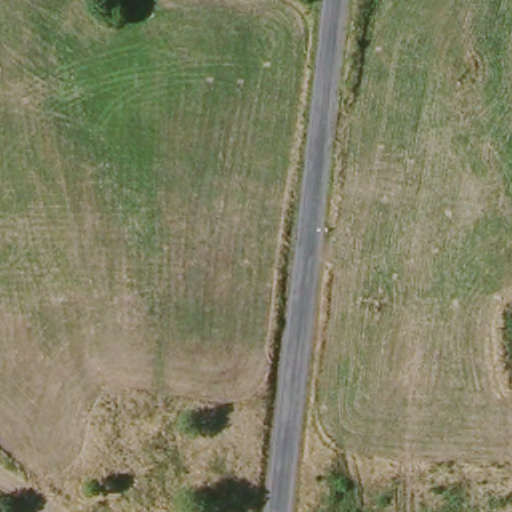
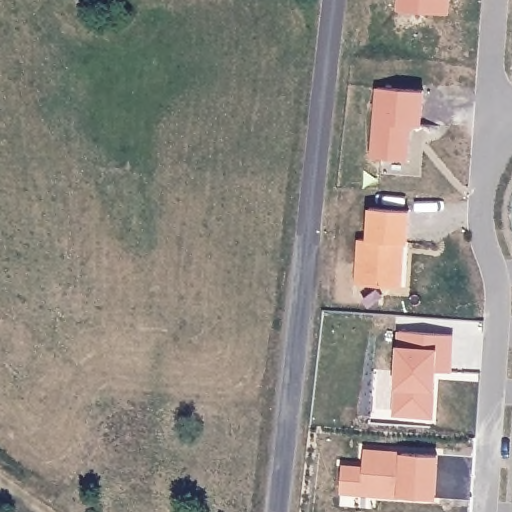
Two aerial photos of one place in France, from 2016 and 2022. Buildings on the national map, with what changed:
new [(400,9),(401,0),(446,0),(445,11),(400,9)]
new [(445,11),(445,0),(450,0),(450,12),(445,11)]
new [(381,84),(426,89),(423,124),(413,123),(410,158),(375,154),(381,84)]
new [(356,241),(363,241),(366,211),(408,213),(405,247),(403,247),(403,251),(400,288),(356,286),(356,241)]
new [(401,329),(455,333),(452,371),(432,369),(430,387),(435,387),(433,415),(395,413),(401,329)]
new [(340,490),(342,464),(364,465),(365,448),(390,449),(402,450),(438,453),(435,497),(375,493),(361,492),(340,490)]

